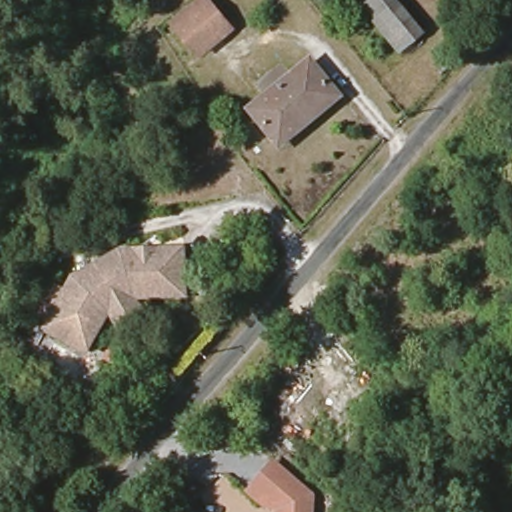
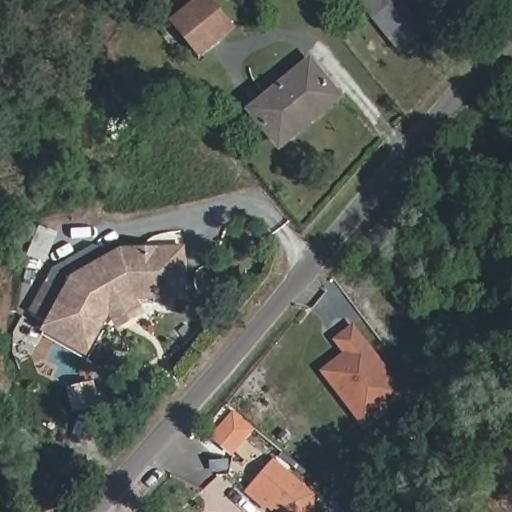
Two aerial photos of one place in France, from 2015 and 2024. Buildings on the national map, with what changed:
unchanged [(202,56),(176,28),(204,0),(206,0),(230,27),(202,56)]
unchanged [(364,3),(367,0),(400,0),(425,33),(403,52),(364,3)]
new [(512,2),(512,4),(485,27),(475,16),(494,0),(511,0),(512,2)]
unchanged [(254,113),(309,65),(333,92),(341,101),(320,119),(284,149),(254,113)]
unchanged [(124,333),(110,311),(88,345),(55,326),(80,277),(120,255),(184,255),(185,297),(134,299),(147,320),(124,333)]
new [(364,429),(319,371),(342,354),(332,340),(355,324),(407,394),(364,429)]
unchanged [(315,512),(275,512),(276,510),(266,509),(247,492),(276,459),(316,492),(315,512)]

